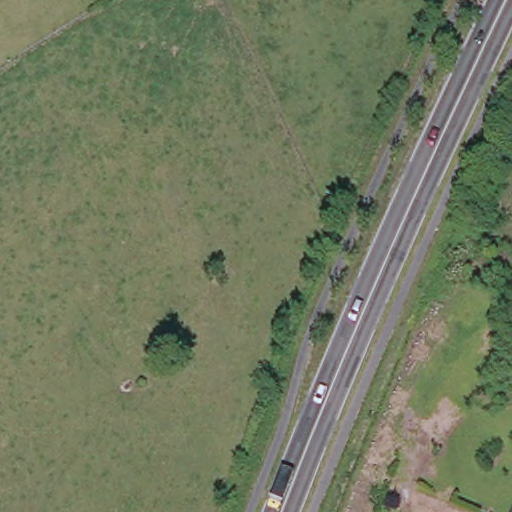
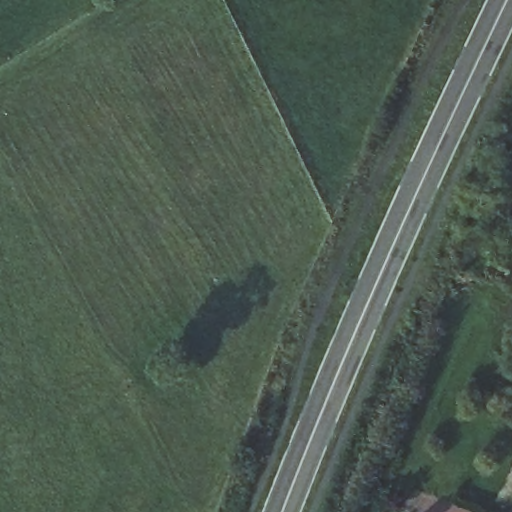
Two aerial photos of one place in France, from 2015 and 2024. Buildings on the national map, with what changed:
[]

